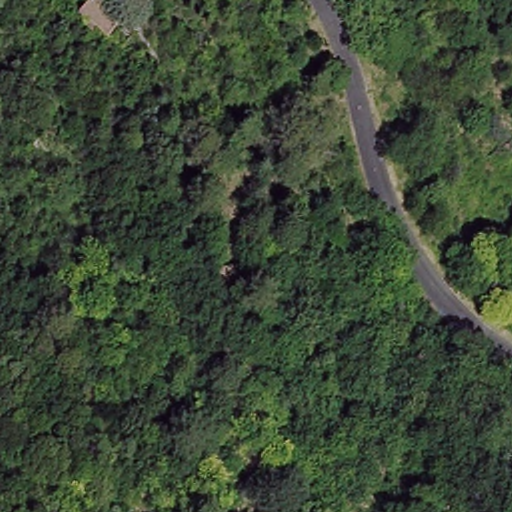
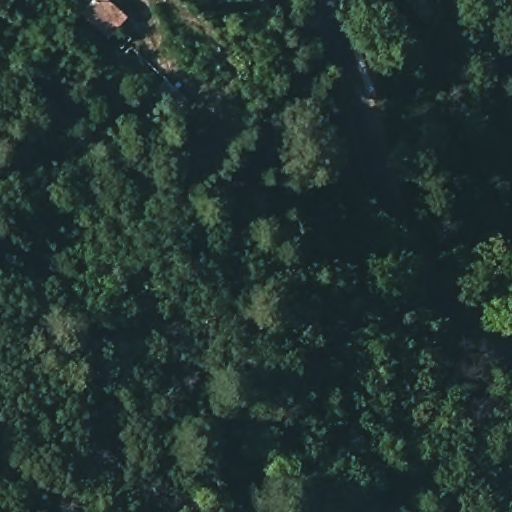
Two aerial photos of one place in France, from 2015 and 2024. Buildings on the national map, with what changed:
unchanged [(92,6),(110,21),(99,34),(80,17),(92,6)]
unchanged [(222,254),(227,271),(210,278),(204,262),(222,254)]

